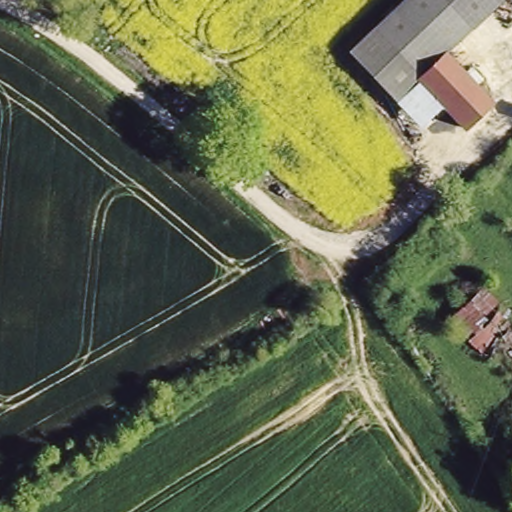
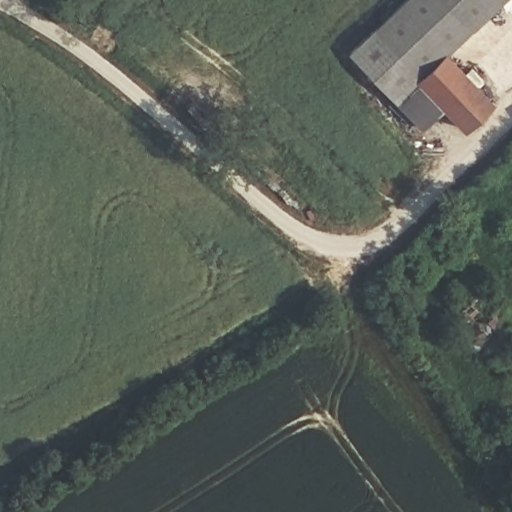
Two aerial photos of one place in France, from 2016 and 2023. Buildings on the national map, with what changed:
unchanged [(414,75),(373,31),(405,0),(509,0),(464,35),(439,55),(414,75)]
unchanged [(439,55),(489,111),(464,134),(414,75),(439,55)]
unchanged [(474,287),(512,320),(512,345),(491,366),(446,316),(474,287)]

